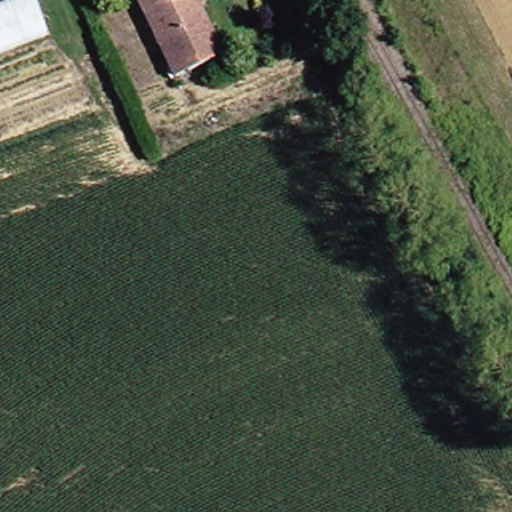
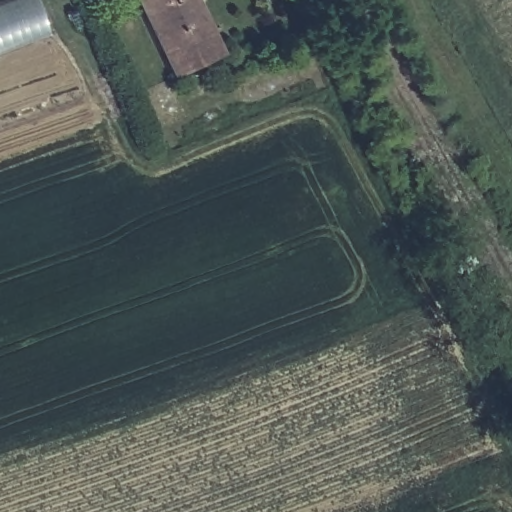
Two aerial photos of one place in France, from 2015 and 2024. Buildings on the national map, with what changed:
unchanged [(0,55),(0,4),(11,0),(47,0),(60,33),(0,55)]
unchanged [(147,8),(144,0),(165,0),(147,8)]
unchanged [(147,8),(165,0),(203,0),(204,2),(235,65),(227,68),(186,88),(147,8)]

